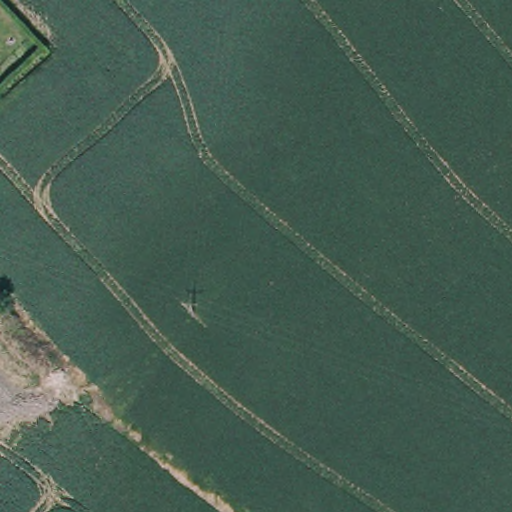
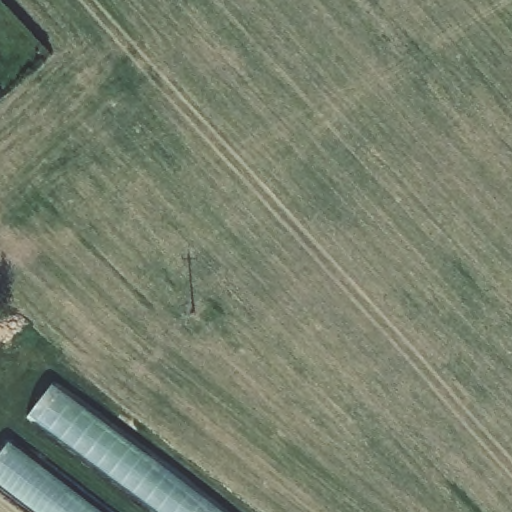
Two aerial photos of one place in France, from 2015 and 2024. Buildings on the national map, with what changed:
new [(221,512),(158,512),(30,415),(52,384),(221,512)]
new [(16,512),(0,500),(0,477),(47,512),(16,512)]

